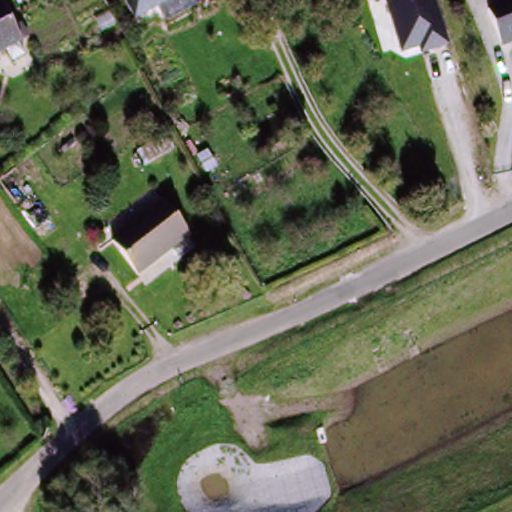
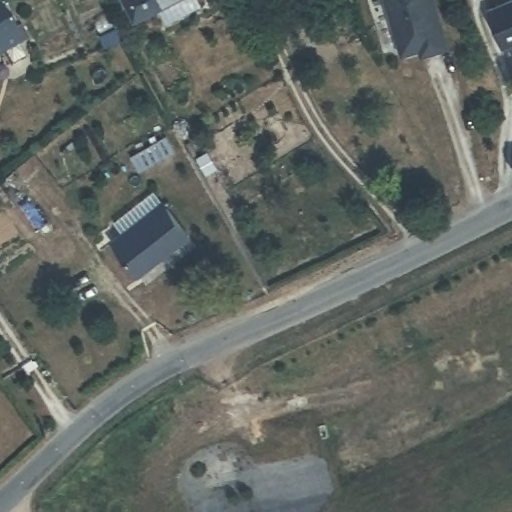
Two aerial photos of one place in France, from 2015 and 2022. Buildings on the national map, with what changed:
unchanged [(156,12),(151,15),(144,0),(197,0),(201,9),(165,28),(156,12)]
unchanged [(418,51),(401,55),(385,0),(433,0),(449,48),(419,56),(418,51)]
unchanged [(478,12),(511,0),(512,0),(512,48),(499,52),(478,12)]
unchanged [(15,50),(22,63),(9,70),(2,57),(0,59),(0,23),(7,36),(17,30),(25,44),(15,50)]
unchanged [(186,241),(138,280),(110,247),(159,207),(186,241)]

